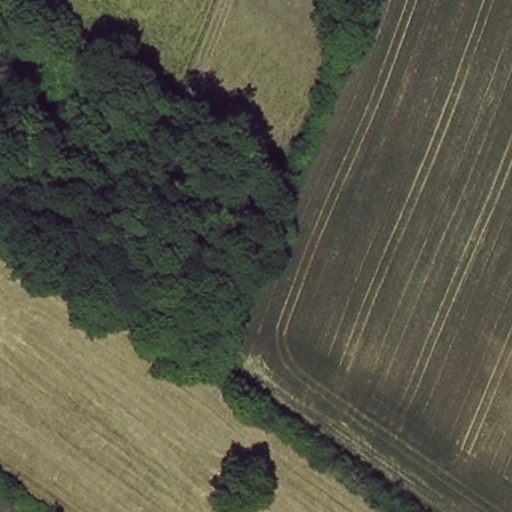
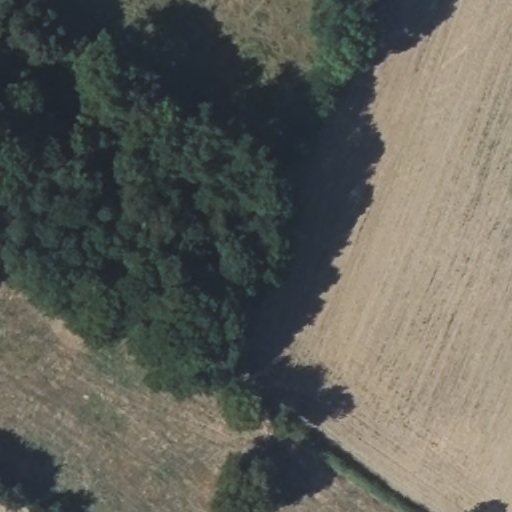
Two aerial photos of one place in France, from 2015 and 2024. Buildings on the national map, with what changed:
[]

